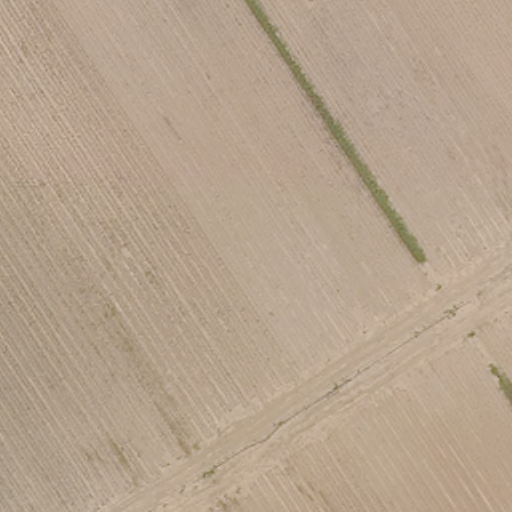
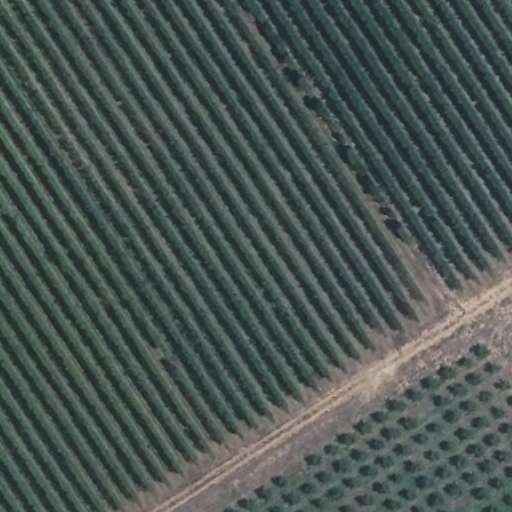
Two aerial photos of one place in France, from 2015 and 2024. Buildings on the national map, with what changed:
[]

